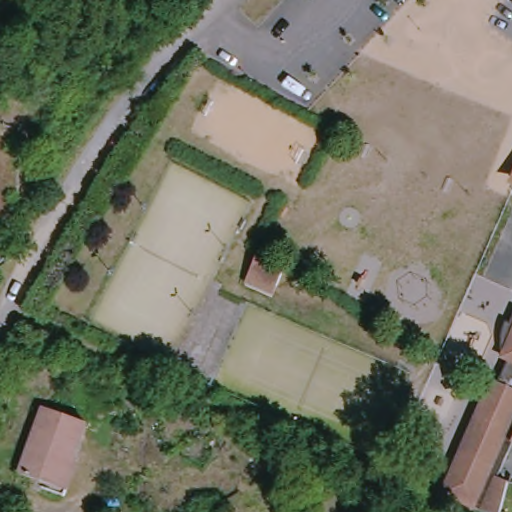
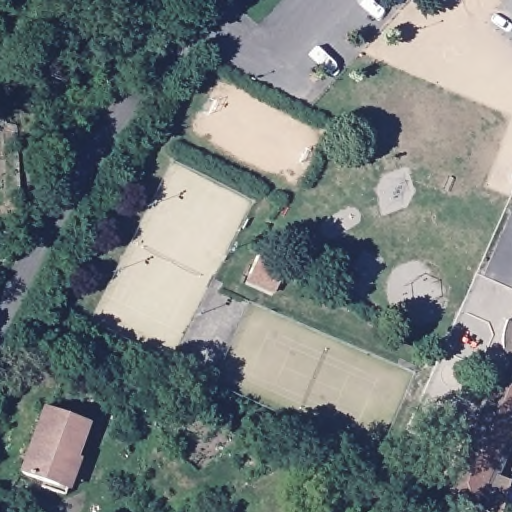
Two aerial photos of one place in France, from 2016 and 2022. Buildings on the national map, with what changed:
unchanged [(510,181),(512,176),(512,181),(510,181)]
unchanged [(249,285),(252,278),(260,260),(287,271),(280,290),(277,297),(249,285)]
unchanged [(508,360),(509,357),(507,348),(507,337),(510,331),(512,326),(512,362),(508,360)]
unchanged [(507,484),(503,512),(493,512),(450,494),(499,381),(505,384),(512,369),(512,470),(507,484)]
unchanged [(79,464),(82,465),(72,495),(27,478),(49,413),(91,428),(79,464)]

